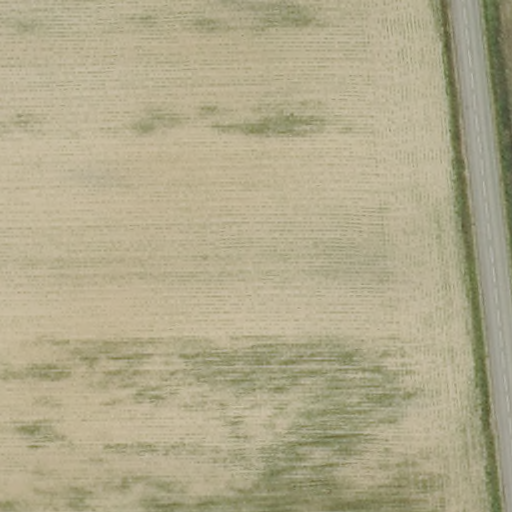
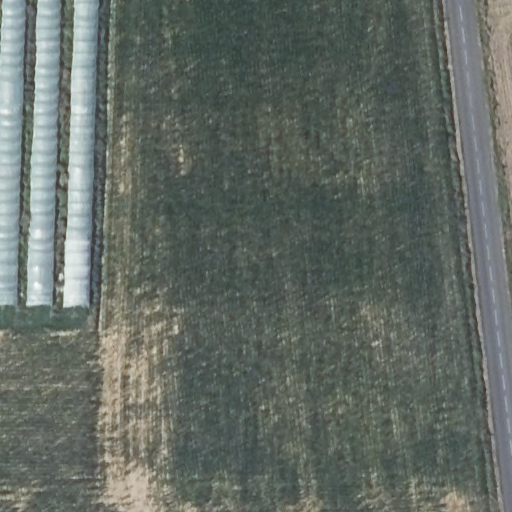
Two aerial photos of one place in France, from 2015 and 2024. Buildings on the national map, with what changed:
new [(88,311),(0,310),(0,0),(101,0),(88,311)]

